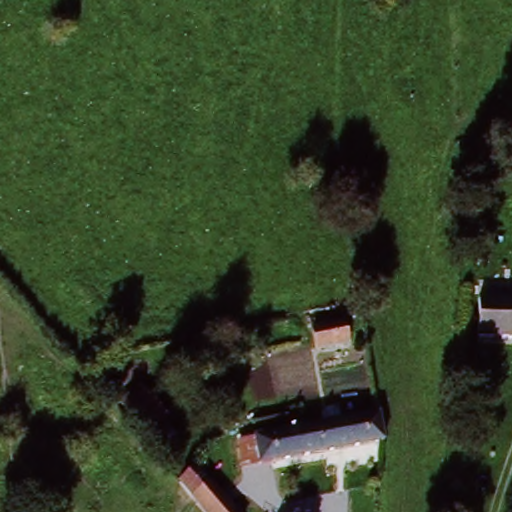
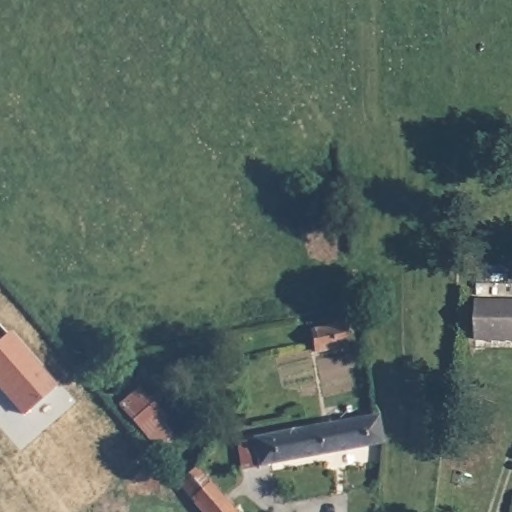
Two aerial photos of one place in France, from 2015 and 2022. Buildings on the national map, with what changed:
unchanged [(480,341),(477,306),(512,303),(512,338),(480,341)]
unchanged [(315,356),(310,326),(338,322),(345,350),(315,356)]
new [(22,418),(0,393),(0,340),(10,330),(57,386),(22,418)]
unchanged [(125,418),(116,402),(142,385),(158,395),(164,392),(190,424),(158,452),(125,418)]
unchanged [(248,435),(368,412),(377,410),(380,443),(256,465),(248,435)]
unchanged [(193,512),(180,497),(202,479),(206,475),(238,512),(193,512)]

